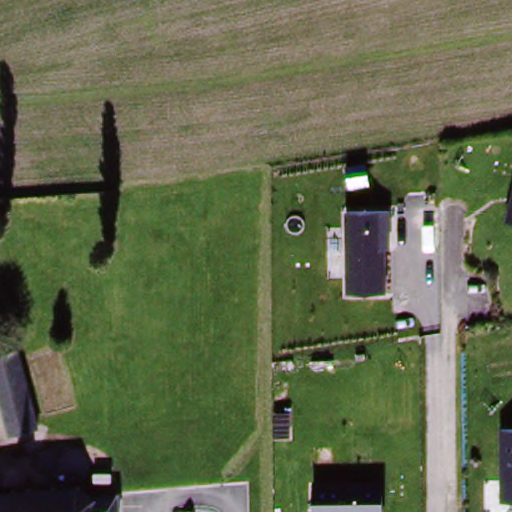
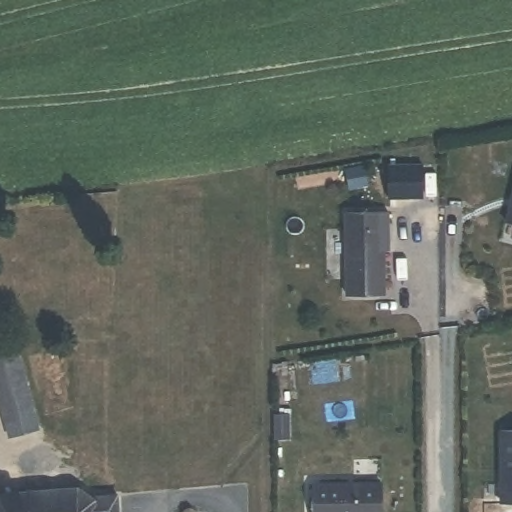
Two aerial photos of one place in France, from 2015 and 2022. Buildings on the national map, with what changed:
unchanged [(508,222),(512,199),(512,223),(508,222)]
unchanged [(392,213),(393,254),(384,254),(386,297),(347,297),(343,214),(392,213)]
unchanged [(12,437),(0,391),(0,360),(21,355),(41,430),(12,437)]
unchanged [(512,431),(512,503),(502,503),(499,431),(512,431)]
unchanged [(382,483),(383,512),(310,512),(309,482),(382,483)]
unchanged [(70,485),(73,485),(91,495),(100,494),(107,493),(114,493),(114,512),(0,512),(0,492),(21,490),(70,485)]

